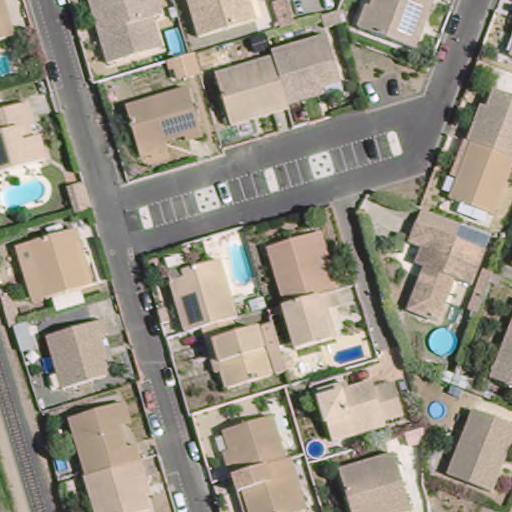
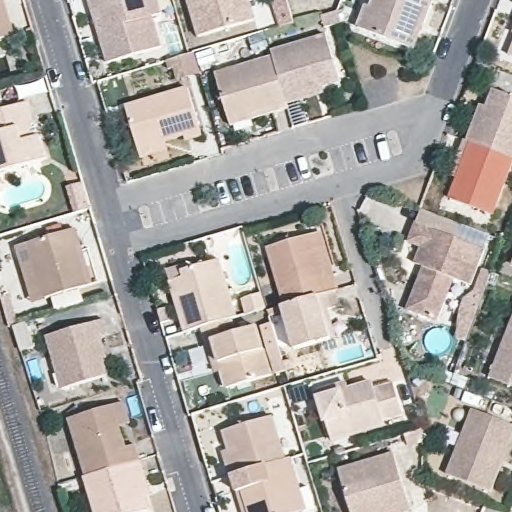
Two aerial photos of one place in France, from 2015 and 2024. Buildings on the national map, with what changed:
unchanged [(15,34),(0,39),(0,0),(6,0),(15,34)]
unchanged [(90,0),(153,0),(160,22),(148,25),(155,47),(108,61),(101,39),(111,37),(106,20),(97,22),(90,0)]
unchanged [(252,16),(202,33),(191,0),(247,0),(252,16)]
unchanged [(421,44),(368,25),(378,0),(437,0),(421,44)]
unchanged [(306,95),(286,101),(272,54),(328,37),(341,80),(325,83),(304,91),(306,95)]
unchanged [(286,101),(288,106),(272,110),(271,103),(253,107),(254,114),(231,120),(217,71),(272,54),(286,101)]
unchanged [(126,102),(186,85),(198,131),(181,136),(178,131),(141,144),(126,102)]
unchanged [(512,150),(477,135),(496,85),(512,92),(512,150)]
unchanged [(31,121),(28,122),(30,134),(35,132),(40,152),(0,163),(0,106),(24,99),(31,121)]
unchanged [(512,178),(500,209),(456,190),(477,135),(512,150),(512,178)]
unchanged [(446,303),(441,318),(409,305),(422,267),(414,265),(420,246),(409,240),(416,220),(481,246),(469,283),(454,279),(447,276),(439,300),(446,303)]
unchanged [(66,232),(71,251),(68,252),(78,286),(36,297),(22,243),(66,232)]
unchanged [(319,289),(278,302),(262,251),(308,239),(322,288),(319,289)]
unchanged [(512,250),(512,256),(510,255),(512,250)]
unchanged [(163,288),(156,265),(184,257),(186,264),(213,256),(228,304),(220,306),(222,318),(196,325),(176,330),(173,317),(180,315),(176,297),(167,299),(163,288)]
unchanged [(319,289),(326,313),(324,314),(318,316),(324,338),(291,347),(278,302),(319,289)]
unchanged [(512,301),(512,377),(489,368),(512,301)]
unchanged [(201,343),(196,325),(222,318),(226,334),(248,329),(259,370),(223,381),(219,365),(213,341),(201,343)]
unchanged [(98,322),(103,337),(97,338),(103,359),(108,373),(63,385),(47,336),(98,322)]
unchanged [(314,380),(346,371),(351,383),(392,371),(402,407),(384,413),(386,419),(330,435),(317,391),(314,380)]
unchanged [(83,479),(66,421),(110,408),(122,405),(133,442),(138,463),(83,479)]
unchanged [(512,426),(488,490),(449,475),(471,411),(512,426)]
unchanged [(285,458),(234,474),(228,459),(234,457),(227,429),(274,416),(285,458)]
unchanged [(352,512),(339,470),(394,453),(409,507),(394,511),(393,504),(371,511),(371,512),(352,512)]
unchanged [(234,474),(285,458),(295,455),(311,510),(304,512),(245,512),(241,497),(234,474)]
unchanged [(138,463),(151,510),(141,512),(92,512),(83,479),(138,463)]

